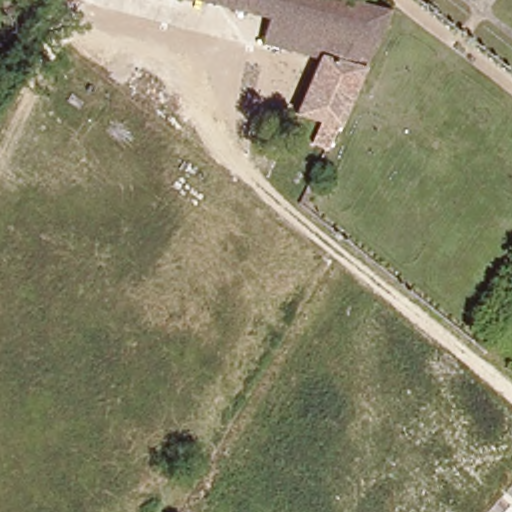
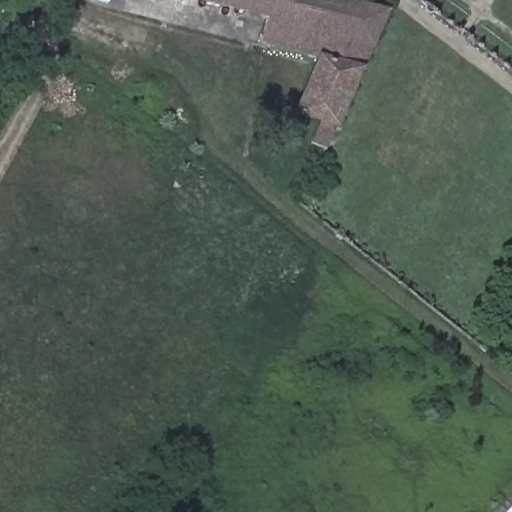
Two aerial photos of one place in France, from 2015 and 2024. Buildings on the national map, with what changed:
unchanged [(363,64),(322,54),(307,51),(260,39),(263,19),(200,0),(358,0),(389,9),(363,64)]
unchanged [(321,123),(299,115),(320,61),(322,54),(363,64),(335,127),(325,148),(311,142),(321,123)]

